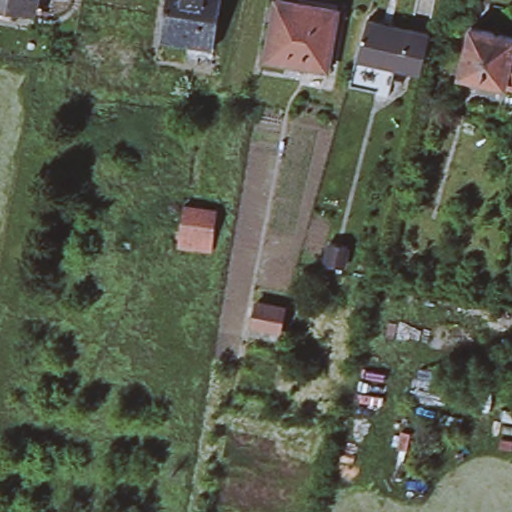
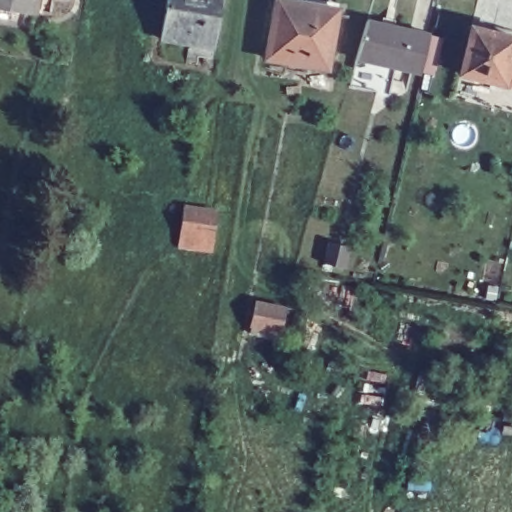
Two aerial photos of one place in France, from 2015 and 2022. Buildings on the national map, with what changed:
unchanged [(35,14),(0,8),(0,0),(37,0),(35,14)]
unchanged [(166,0),(221,0),(214,41),(160,32),(166,0)]
unchanged [(272,0),(287,0),(334,8),(324,68),(262,58),(272,0)]
unchanged [(425,34),(417,73),(352,58),(362,19),(425,34)]
unchanged [(488,77),(456,69),(467,21),(499,29),(512,32),(510,41),(512,42),(512,83),(500,80),(488,77)]
unchanged [(220,207),(212,252),(175,246),(184,202),(220,207)]
unchanged [(355,244),(347,272),(320,265),(327,237),(355,244)]
unchanged [(290,306),(283,335),(250,327),(256,298),(290,306)]

